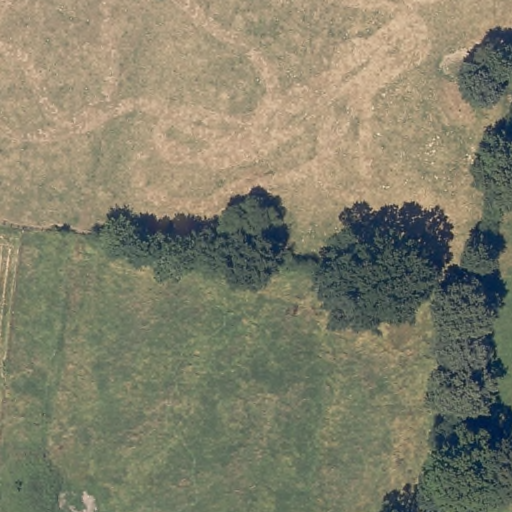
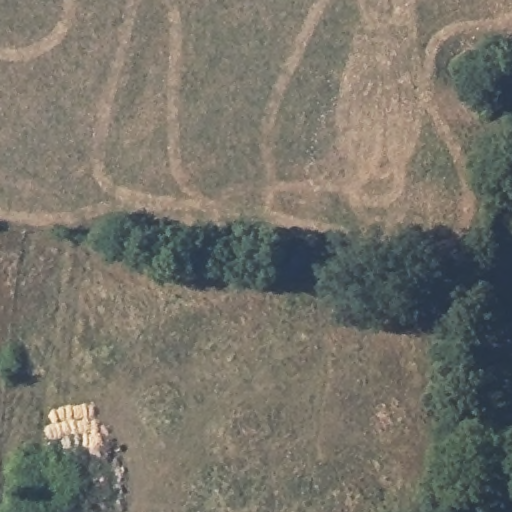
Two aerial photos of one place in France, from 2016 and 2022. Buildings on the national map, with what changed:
[]

